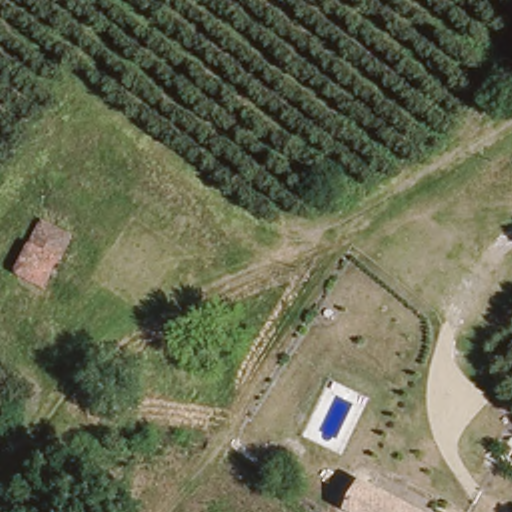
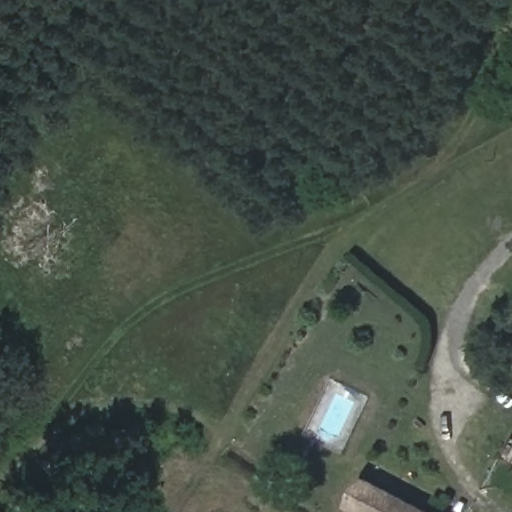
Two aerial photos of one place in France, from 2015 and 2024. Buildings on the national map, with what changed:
unchanged [(66,255),(50,285),(17,270),(43,216),(76,233),(66,255)]
unchanged [(441,512),(359,512),(349,507),(334,497),(350,466),(441,512)]

